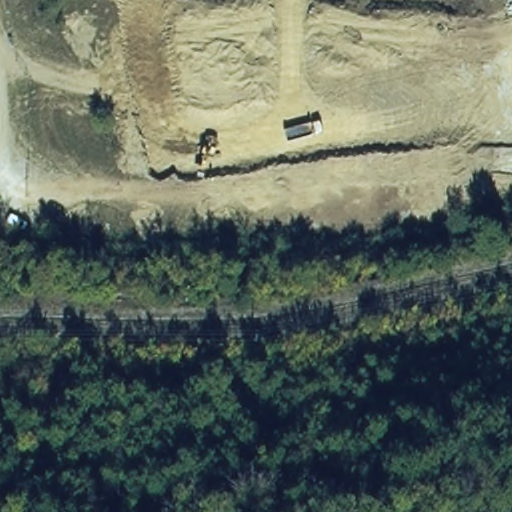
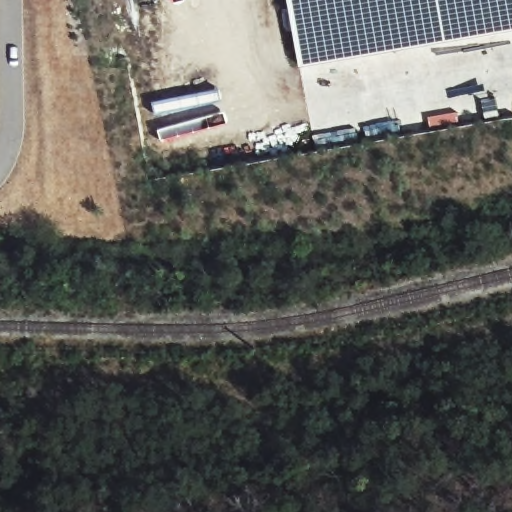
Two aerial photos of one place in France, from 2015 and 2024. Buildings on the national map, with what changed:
new [(301,69),(289,0),(512,0),(512,31),(301,69)]
demolished [(444,89),(442,126),(370,124),(372,86),(444,89)]

